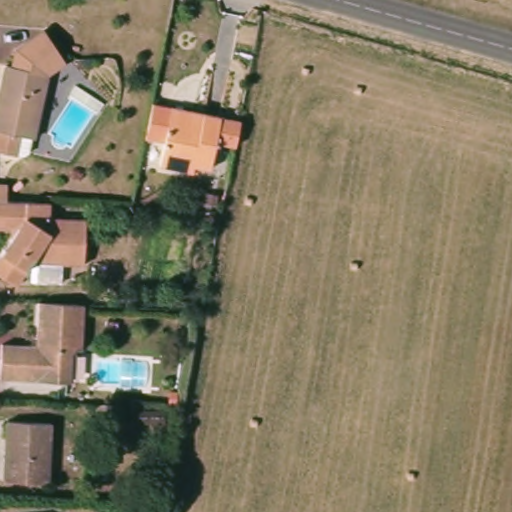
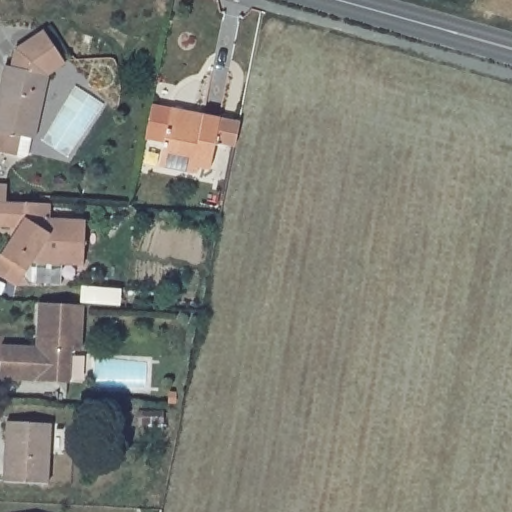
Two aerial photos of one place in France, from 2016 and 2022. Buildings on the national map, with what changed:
unchanged [(20,156),(0,152),(0,68),(3,68),(4,52),(32,32),(57,62),(38,77),(27,137),(24,153),(20,156)]
unchanged [(151,107),(219,121),(239,125),(234,149),(214,145),(208,172),(191,168),(189,176),(156,170),(162,144),(144,140),(151,107)]
unchanged [(6,184),(5,200),(38,202),(44,202),(43,218),(84,219),(83,264),(33,261),(17,286),(0,277),(0,253),(19,224),(0,224),(0,184),(6,184)]
unchanged [(4,360),(5,345),(39,347),(42,301),(90,304),(87,350),(76,350),(74,384),(17,381),(3,381),(4,360)]
unchanged [(157,412),(156,427),(132,426),(133,410),(157,412)]
unchanged [(12,419),(26,420),(62,422),(61,445),(47,444),(44,501),(0,500),(0,491),(3,441),(11,441),(12,419)]

